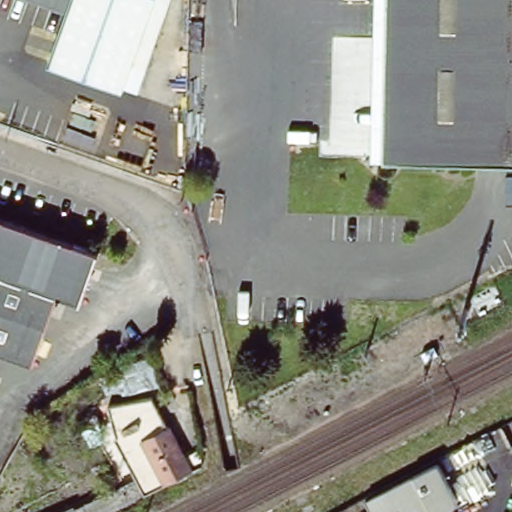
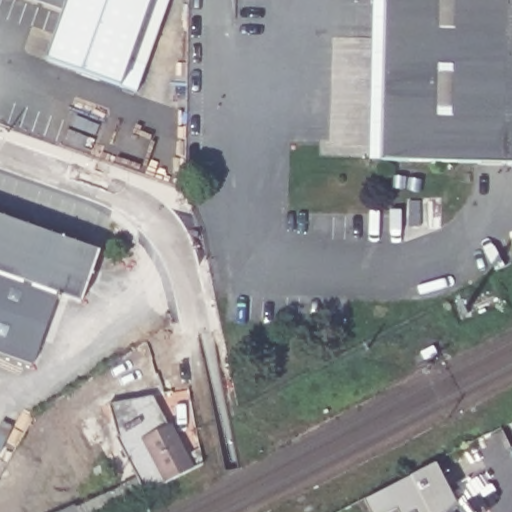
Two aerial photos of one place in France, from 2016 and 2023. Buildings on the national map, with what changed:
unchanged [(127,88),(53,62),(70,13),(33,0),(158,0),(135,63),(127,88)]
unchanged [(135,63),(158,0),(174,0),(151,68),(135,63)]
unchanged [(382,165),(386,0),(512,0),(512,166),(382,165)]
unchanged [(82,303),(59,295),(33,366),(0,354),(0,221),(98,256),(82,303)]
unchanged [(178,467),(152,480),(133,440),(125,444),(110,415),(116,412),(115,403),(143,398),(178,467)]
unchanged [(459,501),(447,512),(371,512),(365,501),(444,464),(459,501)]
unchanged [(137,492),(98,512),(58,512),(131,479),(137,492)]

